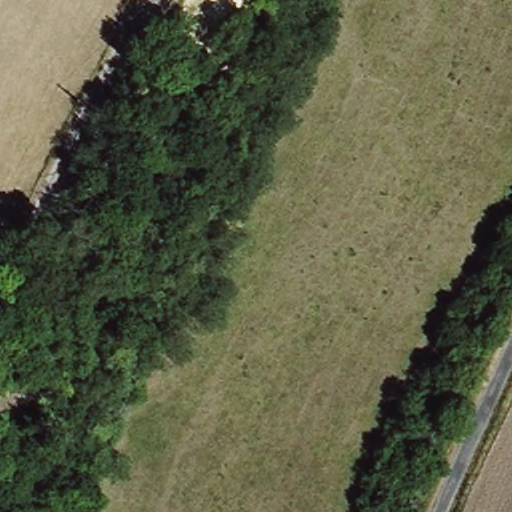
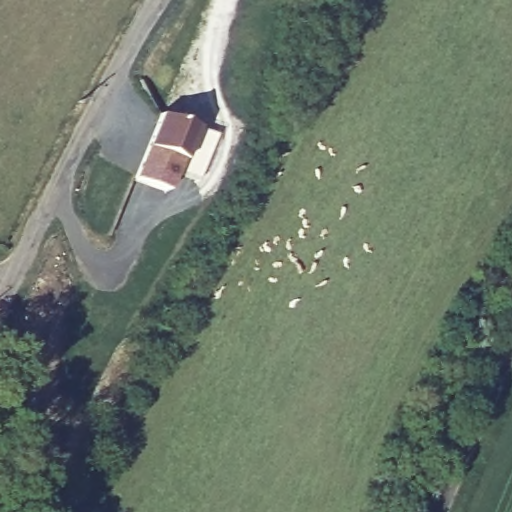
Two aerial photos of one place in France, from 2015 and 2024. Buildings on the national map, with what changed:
new [(210,139),(192,184),(171,177),(165,192),(131,178),(143,147),(156,116),(193,130),(210,139)]

